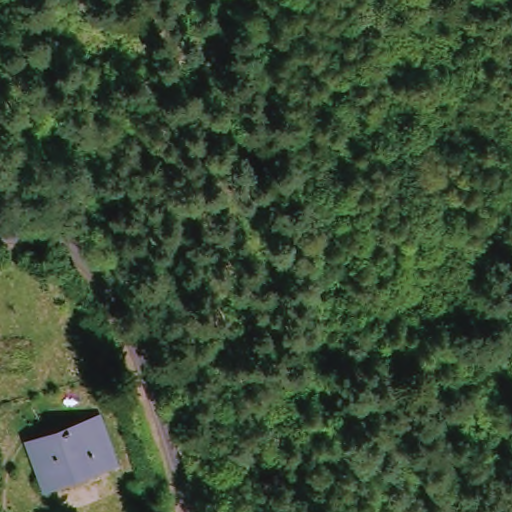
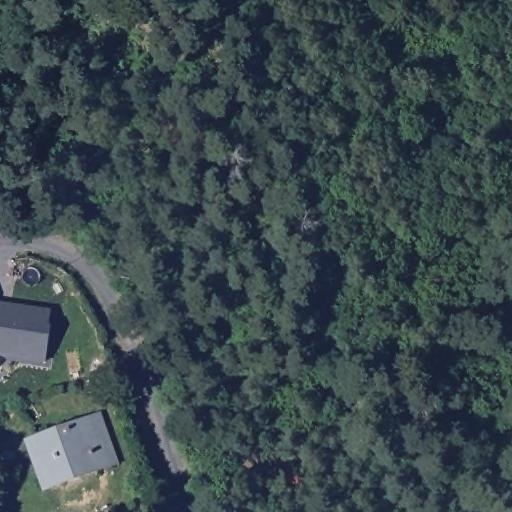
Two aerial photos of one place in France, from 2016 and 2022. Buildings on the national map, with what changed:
new [(50,309),(49,327),(51,327),(45,362),(0,355),(0,301),(50,309)]
unchanged [(27,442),(77,425),(95,419),(109,461),(92,468),(43,485),(27,442)]

